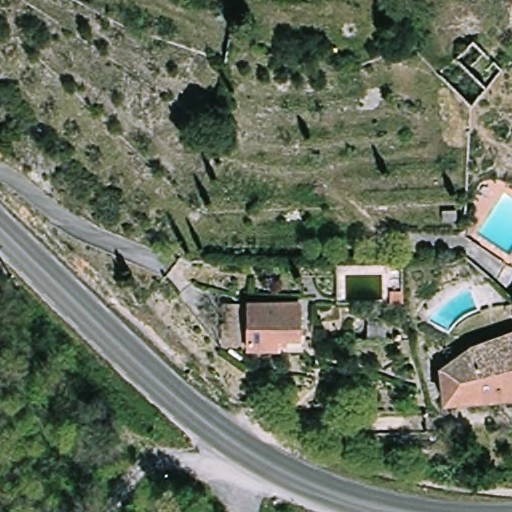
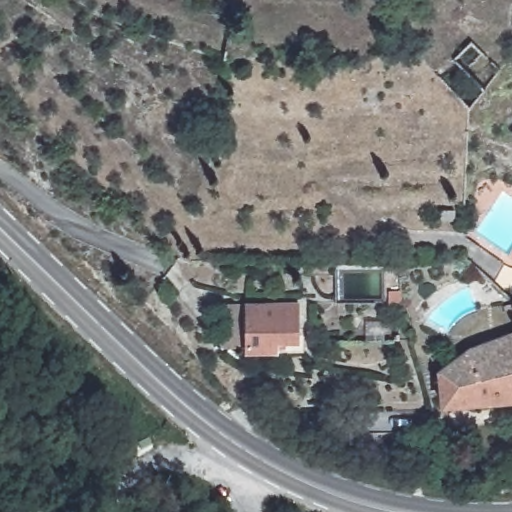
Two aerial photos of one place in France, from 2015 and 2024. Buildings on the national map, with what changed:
unchanged [(389,303),(389,291),(401,290),(402,302),(389,303)]
unchanged [(302,302),(303,347),(246,347),(246,302),(302,302)]
unchanged [(445,403),(442,404),(439,370),(471,345),(512,331),(512,398),(445,403)]

